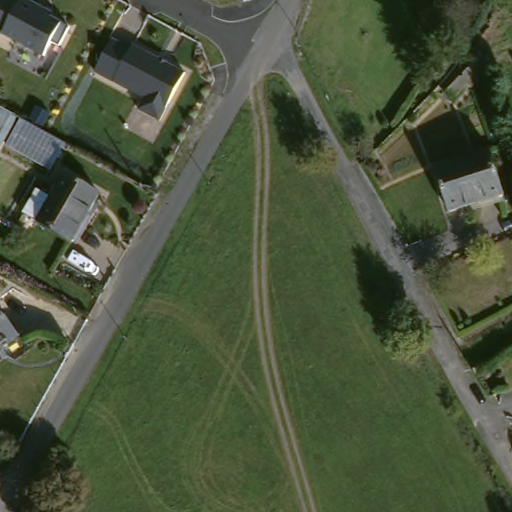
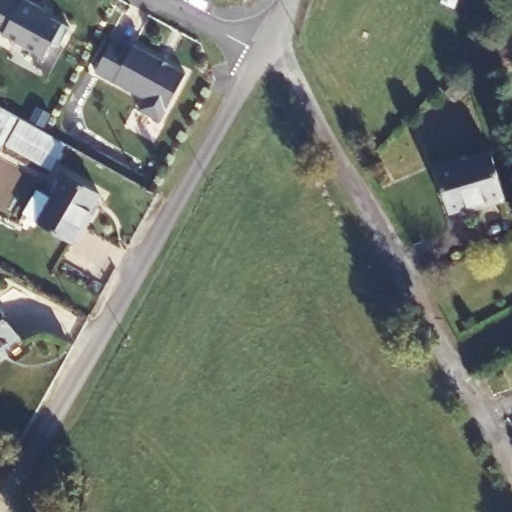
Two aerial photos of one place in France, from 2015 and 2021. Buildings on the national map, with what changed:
unchanged [(0,0),(29,0),(69,19),(50,54),(0,29),(0,0)]
unchanged [(144,106),(149,93),(98,65),(115,31),(190,70),(165,116),(144,106)]
unchanged [(458,79),(459,80),(476,63),(486,73),(454,106),(443,94),(458,79)]
unchanged [(65,142),(51,169),(7,145),(22,118),(65,142)]
unchanged [(512,196),(460,212),(447,166),(501,150),(512,187),(512,196)]
unchanged [(38,213),(52,189),(67,197),(80,173),(115,193),(88,241),(53,222),(38,213)]
unchanged [(24,331),(0,349),(0,296),(24,331)]

